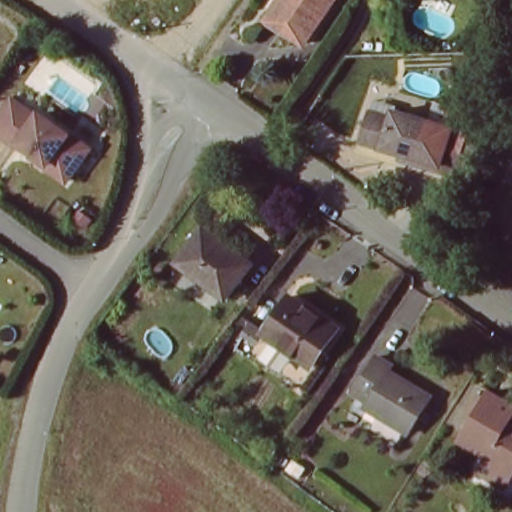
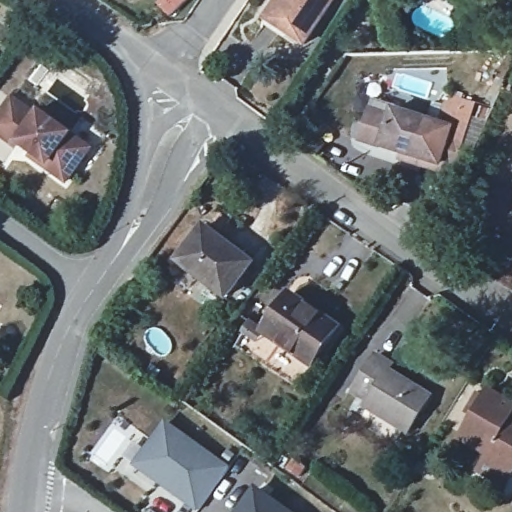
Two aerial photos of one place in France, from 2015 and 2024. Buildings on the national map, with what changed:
unchanged [(276,0),(330,0),(305,40),(266,15),(276,0)]
unchanged [(399,154),(357,144),(364,113),(367,100),(388,105),(387,111),(447,125),(461,129),(452,166),(438,163),(435,172),(397,162),(399,154)]
unchanged [(32,158),(17,147),(15,151),(0,141),(0,117),(10,103),(35,120),(37,117),(88,152),(65,185),(47,173),(29,161),(32,158)]
unchanged [(481,167),(507,178),(488,222),(461,210),(481,167)]
unchanged [(204,228),(251,263),(223,299),(177,264),(204,228)]
unchanged [(288,292),(336,327),(310,360),(264,327),(288,292)]
unchanged [(310,360),(292,386),(238,348),(253,321),(264,327),(310,360)]
unchanged [(361,409),(366,400),(351,389),(376,353),(392,363),(388,370),(430,398),(404,437),(361,409)]
unchanged [(512,396),(512,413),(512,414),(512,470),(488,454),(493,444),(465,426),(492,382),(512,396)]
new [(229,467),(198,512),(197,512),(133,467),(166,419),(229,467)]
new [(293,512),(237,512),(256,485),(293,512)]

